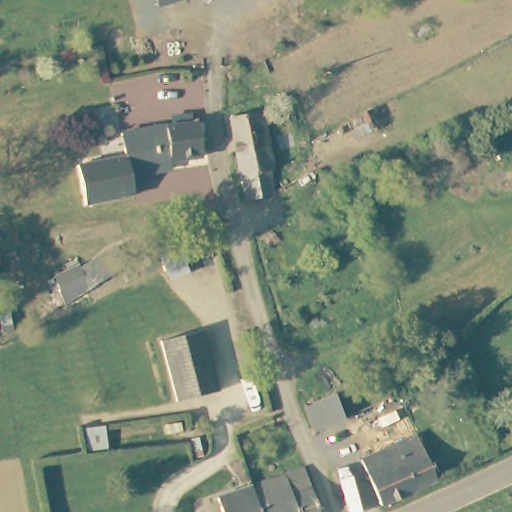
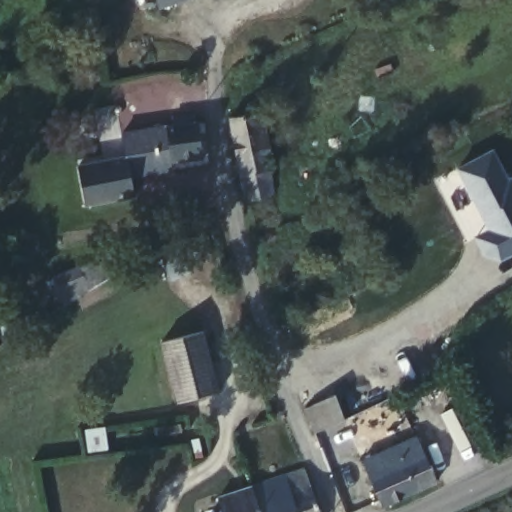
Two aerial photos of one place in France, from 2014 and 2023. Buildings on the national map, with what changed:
unchanged [(152,7),(150,0),(178,0),(152,7)]
unchanged [(256,177),(271,206),(248,217),(231,164),(224,112),(256,108),(256,177)]
unchanged [(129,178),(131,199),(79,204),(77,166),(124,156),(122,134),(165,128),(191,125),(197,124),(201,159),(169,164),(170,173),(129,178)]
new [(493,151),(508,180),(512,179),(512,255),(490,266),(476,238),(490,231),(458,169),(493,151)]
unchanged [(64,307),(60,300),(50,286),(71,273),(80,287),(85,293),(64,307)]
unchanged [(164,341),(207,331),(219,390),(177,399),(164,341)]
unchanged [(334,399),(344,423),(342,423),(313,434),(304,410),(334,399)]
unchanged [(411,438),(432,483),(379,507),(357,462),(411,438)]
unchanged [(302,468),(317,512),(291,512),(279,477),(302,468)]
unchanged [(279,477),(291,512),(270,512),(260,483),(279,477)]
unchanged [(270,512),(214,512),(211,501),(249,487),(260,483),(270,512)]

